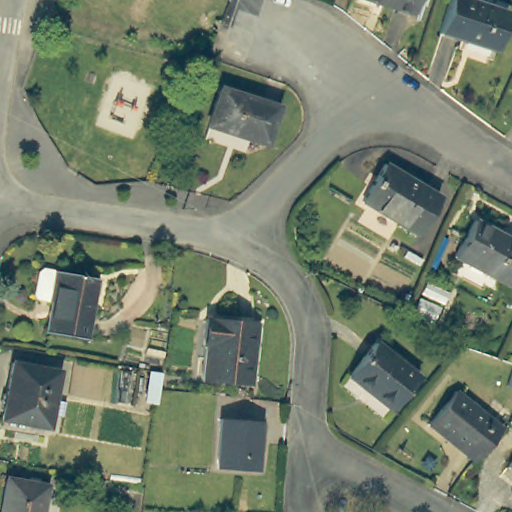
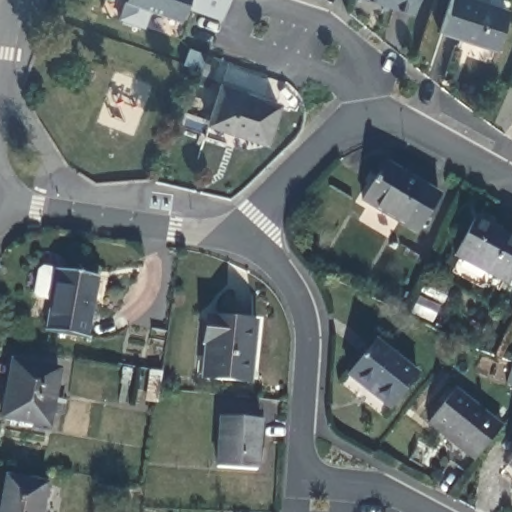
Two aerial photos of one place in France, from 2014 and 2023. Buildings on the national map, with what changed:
new [(187,11),(182,23),(151,12),(145,30),(118,20),(125,1),(121,0),(232,0),(223,22),(187,11)]
unchanged [(372,0),(415,0),(410,15),(372,0)]
unchanged [(497,49),(442,30),(451,0),(482,0),(510,10),(497,49)]
unchanged [(285,111),(272,145),(215,124),(228,90),(285,111)]
unchanged [(443,195),(420,233),(365,200),(387,162),(443,195)]
unchanged [(512,274),(509,280),(454,252),(473,215),(512,235),(512,274)]
unchanged [(92,335),(54,330),(58,302),(44,300),(41,296),(46,270),(50,266),(64,269),(103,275),(92,335)]
unchanged [(259,318),(251,378),(205,372),(209,340),(206,340),(210,311),(259,318)]
unchanged [(418,373),(389,407),(347,373),(375,338),(418,373)]
unchanged [(61,365),(51,422),(7,416),(16,357),(61,365)]
unchanged [(500,423),(473,457),(425,420),(452,385),(500,423)]
unchanged [(261,415),(257,466),(216,462),(220,411),(261,415)]
unchanged [(512,455),(512,466),(507,461),(512,455)]
unchanged [(49,480),(43,512),(2,512),(8,474),(49,480)]

